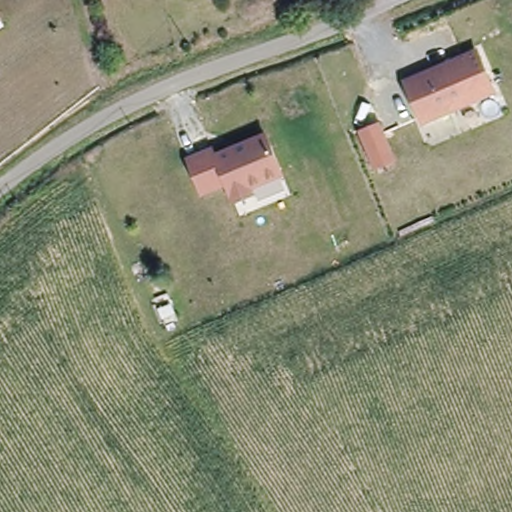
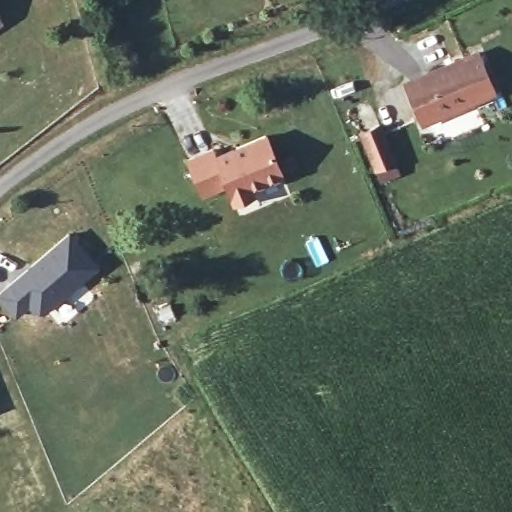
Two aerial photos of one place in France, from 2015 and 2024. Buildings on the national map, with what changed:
unchanged [(0,25),(0,23),(1,25),(0,25)]
unchanged [(479,49),(496,90),(424,121),(408,80),(479,49)]
unchanged [(395,158),(377,166),(362,129),(380,121),(395,158)]
unchanged [(215,151),(219,159),(268,137),(285,177),(252,192),(255,197),(235,205),(227,187),(204,198),(190,163),(215,151)]
new [(41,315),(29,306),(16,318),(0,298),(0,291),(70,232),(99,266),(41,315)]

